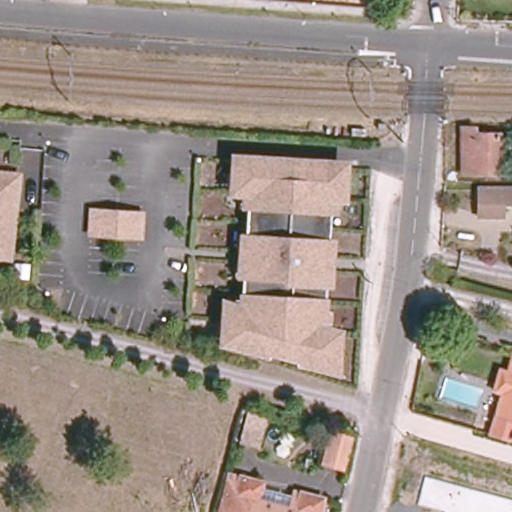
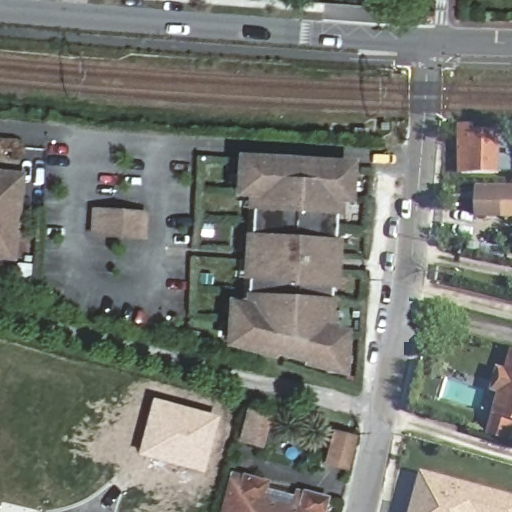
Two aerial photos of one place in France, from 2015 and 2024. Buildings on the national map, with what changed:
unchanged [(463,129),(476,129),(476,135),(501,134),(501,174),(464,175),(463,129)]
unchanged [(348,160),(347,203),(336,202),(336,214),(330,214),(329,238),(336,239),(333,287),(326,286),(325,298),(328,298),(328,312),(332,312),(330,326),(342,328),(341,377),(297,367),(297,363),(271,356),(270,359),(218,347),(221,298),(242,302),(241,293),(244,293),(244,278),(237,277),(239,233),(246,234),(247,209),(242,208),(242,195),(229,193),(232,153),(348,160)]
unchanged [(0,260),(0,170),(22,173),(12,262),(0,260)]
unchanged [(505,204),(505,216),(481,216),(481,190),(512,190),(512,204),(505,204)]
new [(505,204),(512,204),(512,216),(505,216),(505,204)]
unchanged [(144,210),(144,239),(88,235),(90,207),(144,210)]
unchanged [(490,410),(495,391),(492,390),(499,366),(502,366),(507,347),(512,348),(512,416),(490,410)]
new [(149,398),(216,417),(200,473),(134,456),(149,398)]
unchanged [(268,416),(260,447),(241,442),(249,411),(268,416)]
unchanged [(345,469),(323,463),(332,432),(353,438),(345,469)]
new [(425,471),(512,495),(512,512),(413,512),(425,471)]
unchanged [(227,476),(237,479),(237,478),(258,484),(255,499),(288,507),(292,493),(319,500),(316,512),(217,512),(227,476)]

